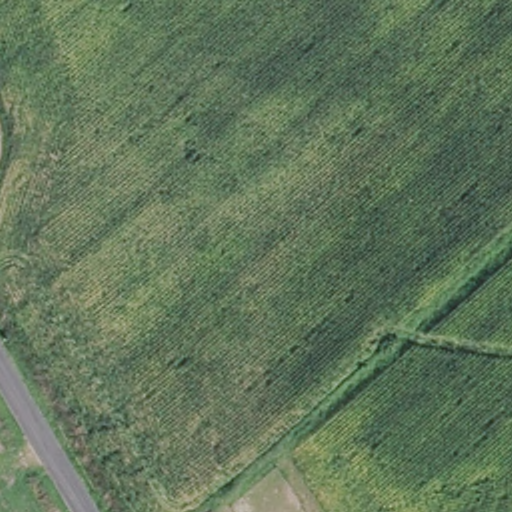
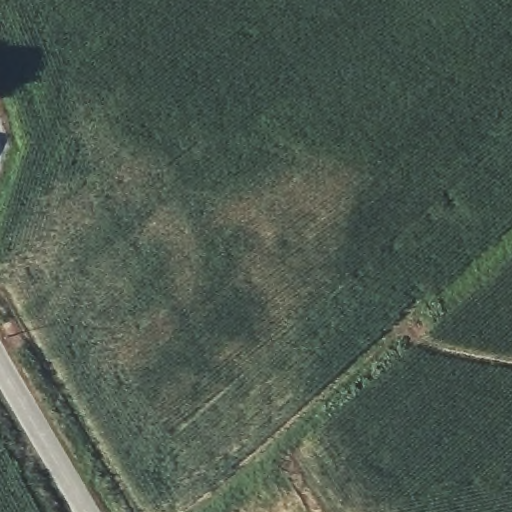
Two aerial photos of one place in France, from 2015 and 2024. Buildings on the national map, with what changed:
[]

